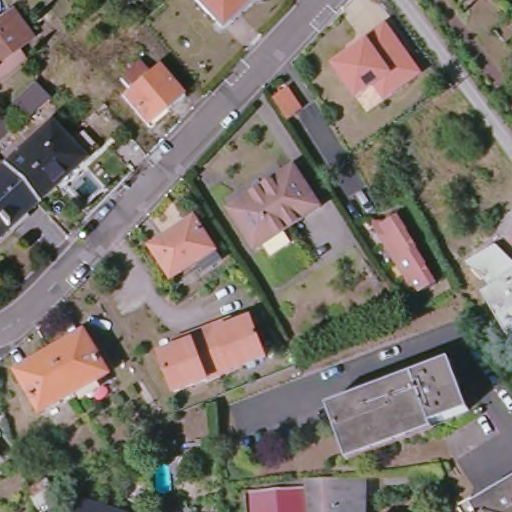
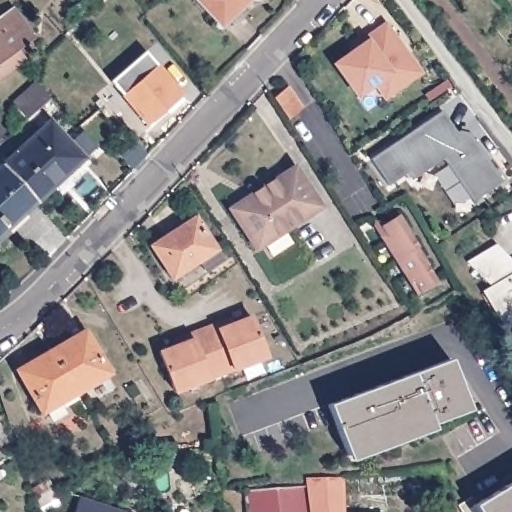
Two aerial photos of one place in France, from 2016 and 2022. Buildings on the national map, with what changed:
unchanged [(221,25),(196,0),(248,0),(221,25)]
unchanged [(1,82),(0,81),(0,20),(17,7),(39,37),(22,49),(30,60),(1,82)]
unchanged [(385,102),(376,88),(359,99),(334,64),(370,38),(388,24),(425,74),(385,102)]
unchanged [(175,109),(171,105),(150,124),(125,95),(133,88),(125,78),(144,60),(153,70),(160,64),(188,96),(175,109)]
unchanged [(13,104),(37,83),(50,98),(26,119),(13,104)]
unchanged [(288,120),(274,98),(288,86),(302,109),(288,120)]
new [(443,157),(413,178),(406,171),(389,183),(371,158),(442,111),(456,132),(467,131),(501,181),(471,199),(443,157)]
unchanged [(50,122),(78,152),(31,195),(3,164),(50,122)]
unchanged [(5,220),(9,225),(0,234),(0,168),(3,164),(31,195),(5,220)]
unchanged [(256,247),(233,213),(257,197),(255,194),(293,168),(318,206),(256,247)]
unchanged [(409,230),(408,231),(420,247),(418,248),(428,264),(427,264),(438,282),(417,295),(373,226),(380,221),(382,224),(399,214),(409,230)]
unchanged [(205,273),(198,261),(173,277),(151,245),(195,217),(216,249),(225,260),(205,273)]
unchanged [(496,292),(471,266),(500,249),(512,261),(512,335),(490,296),(496,292)]
unchanged [(203,328),(220,322),(231,318),(234,324),(251,317),(266,355),(220,373),(203,328)]
unchanged [(160,352),(177,345),(175,339),(187,335),(203,328),(220,373),(175,391),(160,352)]
unchanged [(75,392),(51,351),(85,331),(109,372),(75,392)]
unchanged [(42,412),(17,371),(51,351),(75,392),(42,412)]
unchanged [(470,409),(346,455),(328,404),(450,358),(470,409)]
unchanged [(0,422),(0,420),(1,421),(0,422)]
unchanged [(7,459),(0,464),(0,449),(7,459)]
unchanged [(321,512),(319,478),(362,476),(362,512),(321,512)]
unchanged [(35,498),(30,489),(49,478),(55,488),(35,498)]
unchanged [(300,478),(319,478),(321,512),(242,512),(240,486),(300,485),(300,478)]
unchanged [(512,481),(512,512),(477,512),(472,505),(512,481)]
unchanged [(120,512),(75,512),(80,497),(120,512)]

